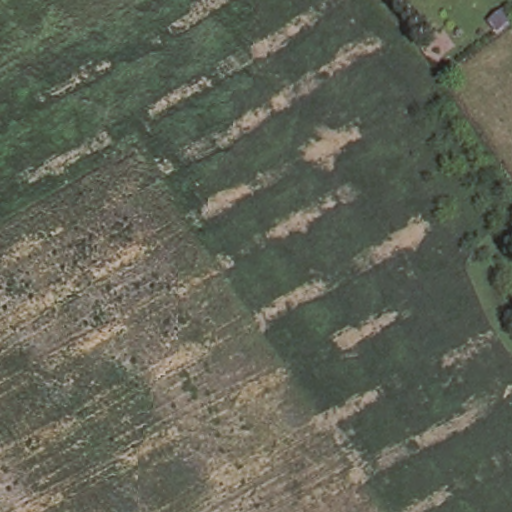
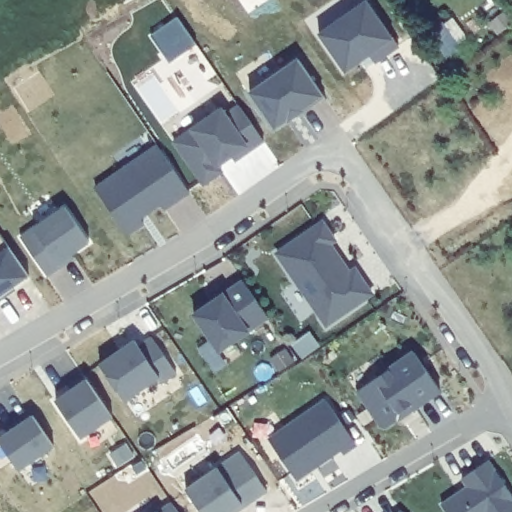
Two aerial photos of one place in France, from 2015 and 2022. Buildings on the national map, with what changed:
new [(366,0),(393,42),(343,75),(317,36),(366,0)]
new [(178,19),(196,46),(169,63),(150,35),(178,19)]
new [(249,93),(298,59),(324,96),(275,129),(249,93)]
new [(225,173),(207,185),(177,143),(225,109),(229,116),(242,106),(250,119),(267,142),(239,161),(236,157),(221,167),(225,173)]
new [(147,224),(130,236),(98,189),(160,146),(192,193),(168,210),(164,205),(149,215),(143,219),(147,224)]
new [(77,259),(50,278),(23,239),(68,208),(93,244),(87,247),(90,250),(77,259)]
new [(339,241),(333,244),(338,252),(353,273),(358,269),(375,294),(330,325),(281,254),(326,223),(339,241)]
new [(8,248),(26,277),(12,288),(14,292),(0,301),(0,236),(8,248)]
new [(247,282),(272,319),(223,353),(197,316),(247,282)]
new [(137,342),(138,342),(142,348),(155,338),(180,374),(166,384),(162,379),(128,403),(103,366),(122,352),(137,342)]
new [(390,428),(385,427),(360,392),(418,353),(444,391),(417,409),(401,420),(390,428)]
new [(75,391),(72,387),(87,377),(116,418),(85,439),(59,402),(60,401),(75,391)]
new [(330,401),(360,444),(347,454),(344,449),(300,480),(273,441),(330,401)]
new [(36,417),(57,448),(22,472),(1,442),(36,417)]
new [(189,491),(244,453),(271,493),(248,509),(243,512),(204,512),(189,491)]
new [(466,478),(492,461),(512,489),(512,512),(450,512),(445,506),(463,493),(472,487),(466,478)]
new [(170,504),(177,512),(158,512),(170,504)]

